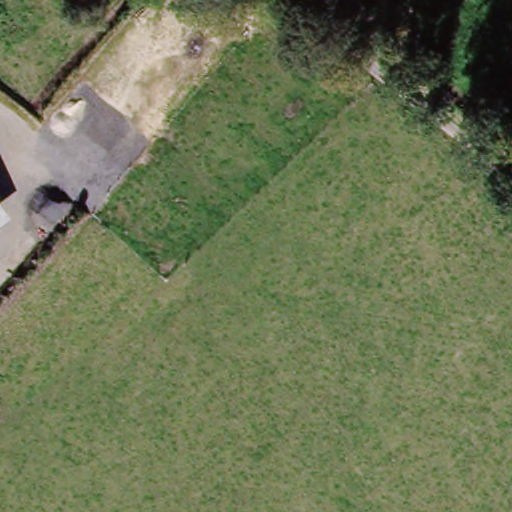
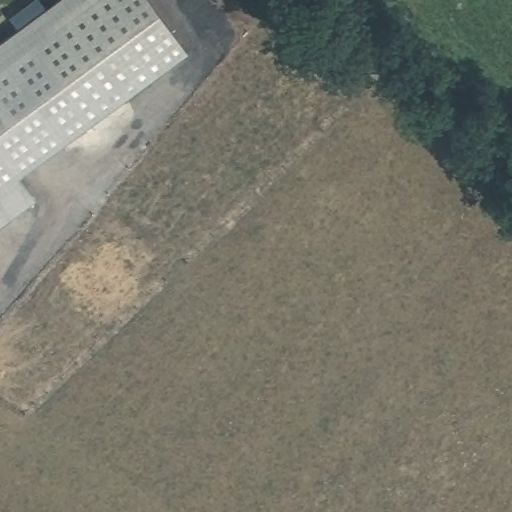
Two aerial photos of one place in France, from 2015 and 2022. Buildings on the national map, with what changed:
new [(17,27),(8,16),(31,0),(41,0),(45,6),(53,0),(152,0),(190,50),(19,175),(35,197),(7,217),(0,208),(0,40),(17,27)]
unchanged [(9,220),(0,227),(0,208),(9,220)]

